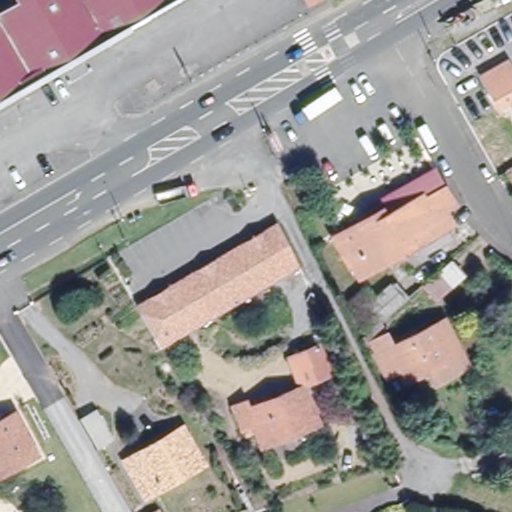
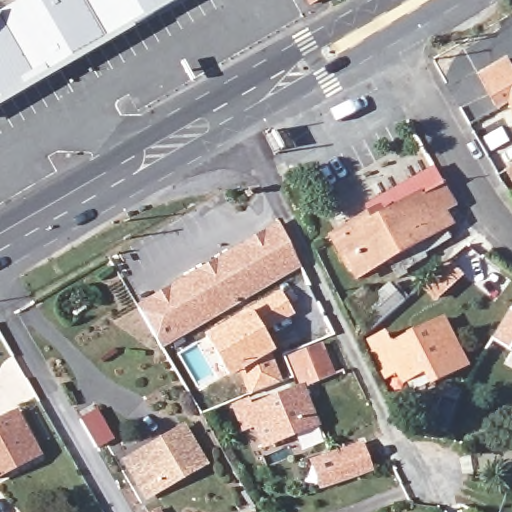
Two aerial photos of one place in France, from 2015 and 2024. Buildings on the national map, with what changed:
unchanged [(0,101),(0,11),(16,1),(16,0),(173,0),(0,101)]
unchanged [(310,5),(307,0),(319,0),(310,5)]
unchanged [(509,102),(497,109),(480,77),(508,60),(512,67),(512,108),(509,102)]
unchanged [(441,211),(449,223),(443,227),(448,236),(416,255),(419,260),(403,269),(405,273),(395,279),(385,260),(358,275),(352,264),(345,268),(328,239),(367,217),(362,207),(431,168),(453,204),(441,211)]
unchanged [(507,174),(512,172),(512,183),(507,174)]
unchanged [(157,351),(134,310),(272,221),(293,263),(157,351)]
unchanged [(448,262),(460,276),(434,300),(421,286),(448,262)]
unchanged [(350,317),(353,315),(342,303),(360,288),(370,300),(388,283),(402,299),(364,333),(350,317)]
new [(293,314),(262,332),(273,351),(270,352),(280,382),(247,395),(240,371),(229,378),(202,335),(249,308),(279,291),(293,314)]
new [(511,348),(491,338),(512,307),(512,349),(511,348)]
unchanged [(462,366),(430,383),(423,370),(400,382),(395,370),(381,377),(371,355),(372,354),(366,342),(382,334),(388,346),(440,320),(462,366)]
unchanged [(318,346),(330,376),(304,387),(320,423),(261,447),(252,425),(241,430),(231,408),(244,402),(246,409),(300,386),(288,358),(318,346)]
unchanged [(79,420),(94,411),(110,439),(95,448),(79,420)]
unchanged [(0,475),(0,421),(12,414),(35,456),(0,475)]
unchanged [(134,480),(123,462),(179,429),(200,465),(179,478),(144,498),(134,480)]
new [(316,490),(307,459),(361,440),(372,470),(316,490)]
unchanged [(157,512),(154,512),(156,510),(157,512)]

